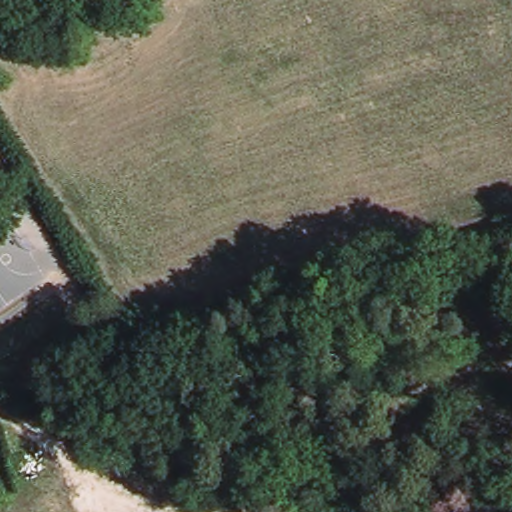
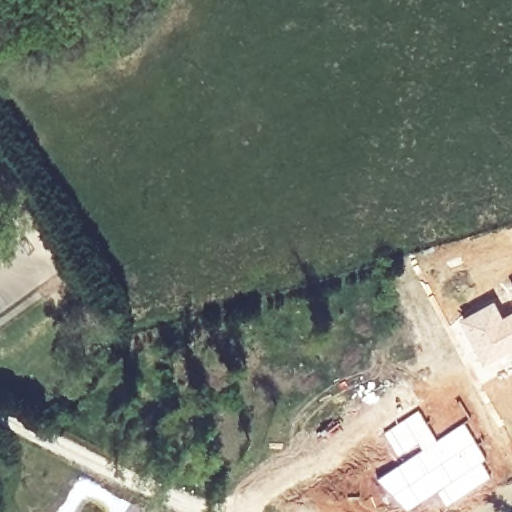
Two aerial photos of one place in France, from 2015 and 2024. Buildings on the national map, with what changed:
new [(512,282),(512,291),(508,284),(512,282)]
new [(504,313),(512,309),(512,349),(486,362),(461,315),(495,296),(504,313)]
new [(417,410),(436,439),(401,460),(383,431),(417,410)]
new [(446,505),(437,491),(406,510),(376,477),(401,460),(436,439),(463,424),(485,460),(481,462),(490,477),(446,505)]

